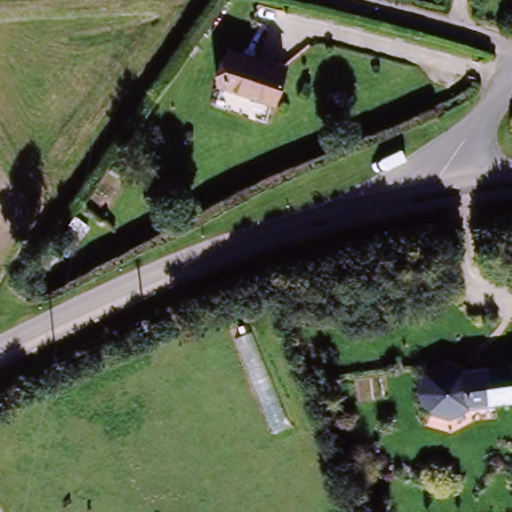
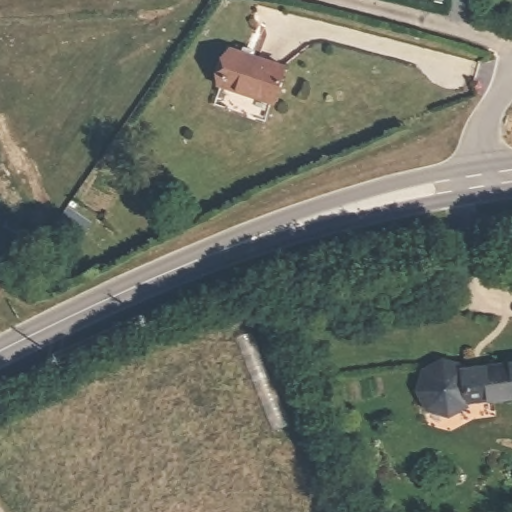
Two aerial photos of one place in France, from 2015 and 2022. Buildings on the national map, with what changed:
unchanged [(270,108),(220,74),(240,42),(290,76),(270,108)]
unchanged [(425,404),(422,396),(422,372),(430,361),(445,355),(459,356),(465,363),(512,357),(512,396),(471,400),(464,410),(451,413),(440,414),(428,408),(425,404)]

